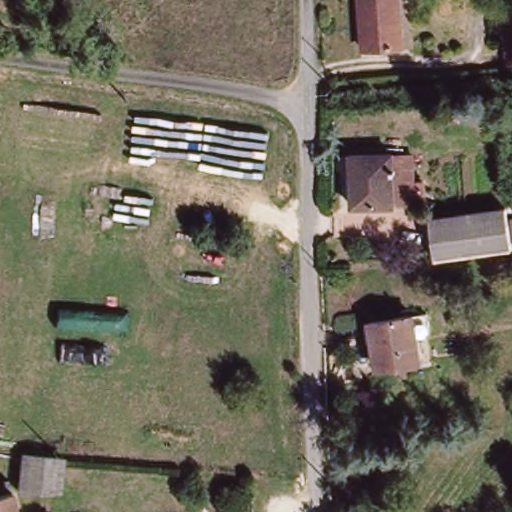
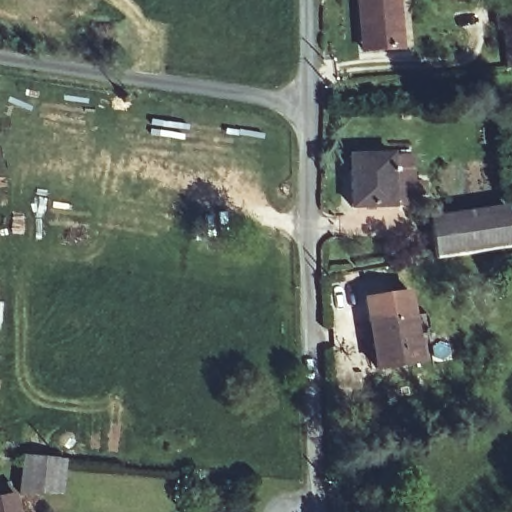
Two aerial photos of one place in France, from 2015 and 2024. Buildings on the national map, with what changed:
unchanged [(402,51),(366,53),(362,0),(399,0),(402,51)]
unchanged [(500,61),(497,21),(488,22),(485,0),(512,0),(512,59),(500,61)]
unchanged [(386,205),(352,206),(350,157),(404,156),(405,187),(406,204),(386,205)]
unchanged [(429,219),(507,210),(512,248),(434,259),(429,219)]
new [(367,296),(409,291),(413,318),(371,323),(367,296)]
unchanged [(375,363),(371,323),(413,318),(418,358),(375,363)]
unchanged [(181,454),(180,468),(162,467),(163,453),(181,454)]
unchanged [(55,457),(64,458),(63,488),(44,489),(21,487),(23,455),(34,456),(55,457)]
unchanged [(18,512),(0,512),(0,496),(14,494),(18,512)]

